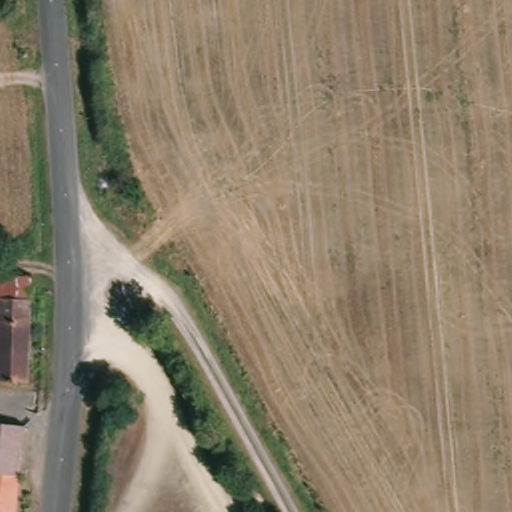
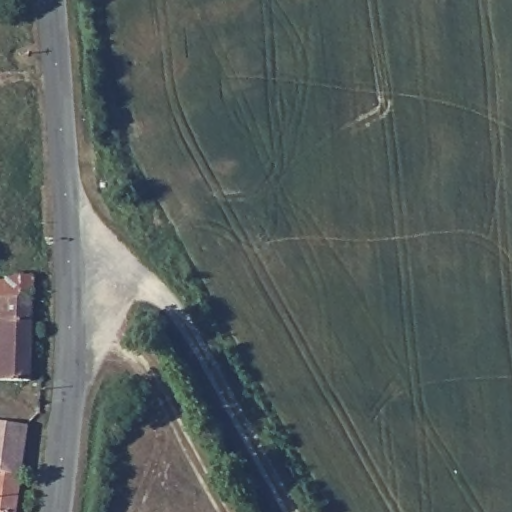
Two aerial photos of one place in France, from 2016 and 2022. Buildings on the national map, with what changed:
unchanged [(34,299),(0,299),(0,274),(34,274),(34,299)]
unchanged [(30,382),(0,381),(0,299),(34,299),(30,382)]
unchanged [(21,475),(0,473),(0,422),(26,426),(21,475)]
unchanged [(17,512),(0,512),(0,473),(21,475),(17,512)]

